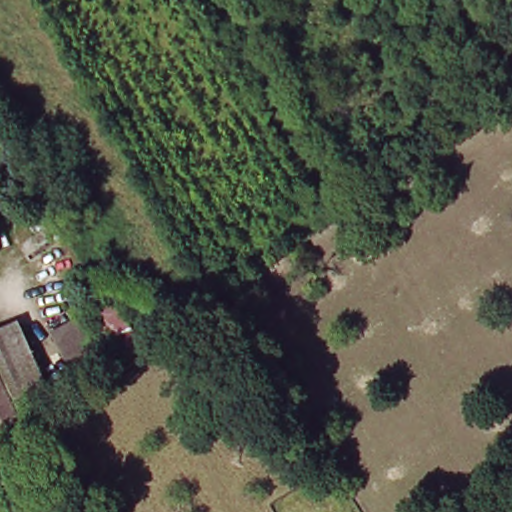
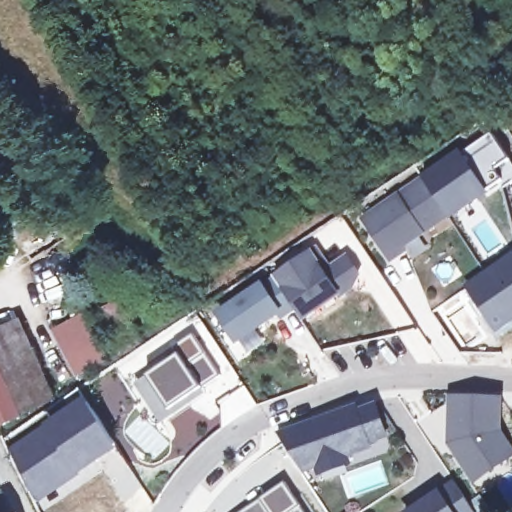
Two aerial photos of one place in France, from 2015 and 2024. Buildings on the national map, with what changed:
new [(419,178),(461,149),(490,132),(509,160),(493,172),(498,179),(485,186),(490,193),(451,220),(447,214),(404,247),(405,251),(389,261),(359,218),(419,178)]
new [(312,246),(326,265),(342,253),(360,276),(342,296),(305,323),(296,309),(275,277),(312,246)]
new [(469,288),(512,258),(512,319),(497,329),(469,288)]
new [(296,309),(280,320),(278,317),(237,344),(215,313),(262,281),(275,277),(296,309)]
unchanged [(89,318),(89,316),(103,309),(116,333),(115,334),(125,354),(93,372),(70,327),(87,318),(89,318)]
unchanged [(27,321),(60,397),(2,425),(0,423),(0,421),(0,333),(27,321)]
new [(192,332),(222,375),(205,390),(180,349),(176,344),(192,332)]
new [(132,381),(146,372),(180,349),(205,390),(175,415),(159,424),(132,381)]
new [(28,434),(50,415),(83,394),(119,447),(70,481),(37,501),(7,447),(28,434)]
new [(497,432),(512,453),(512,454),(474,481),(449,444),(452,398),(499,399),(497,432)]
new [(319,474),(315,465),(300,471),(277,435),(355,407),(357,412),(375,406),(385,436),(367,442),(369,447),(345,455),(348,463),(319,474)]
new [(139,419),(142,423),(146,419),(170,443),(154,460),(124,432),(139,419)]
new [(308,512),(236,512),(286,480),(308,512)]
new [(453,482),(474,512),(408,512),(441,491),(453,482)]
unchanged [(10,512),(0,512),(0,511),(7,508),(10,512)]

